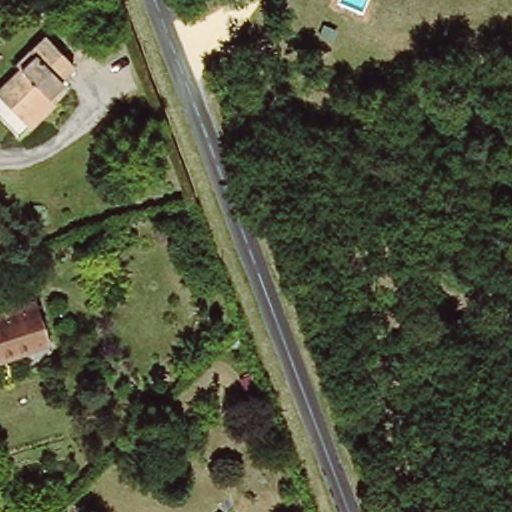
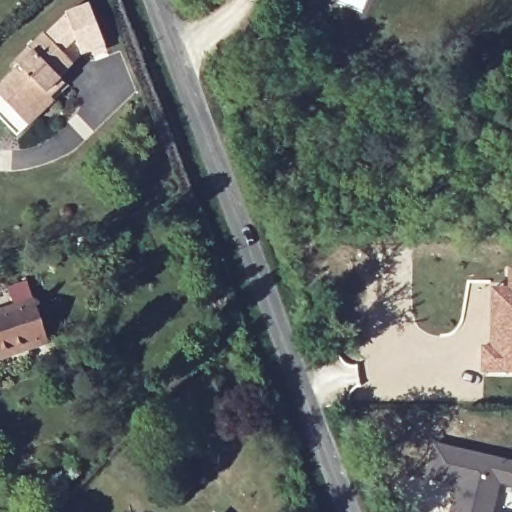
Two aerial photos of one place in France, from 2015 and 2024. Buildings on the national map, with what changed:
unchanged [(26,124),(20,118),(0,97),(0,83),(17,66),(14,60),(43,33),(74,65),(60,79),(65,84),(51,97),(54,100),(26,124)]
new [(481,373),(481,341),(489,342),(490,287),(508,287),(508,267),(512,266),(512,373),(481,373)]
unchanged [(0,358),(0,313),(35,301),(48,342),(0,358)]
new [(512,461),(512,488),(500,485),(493,512),(452,512),(454,495),(440,491),(440,489),(421,483),(431,442),(512,461)]

